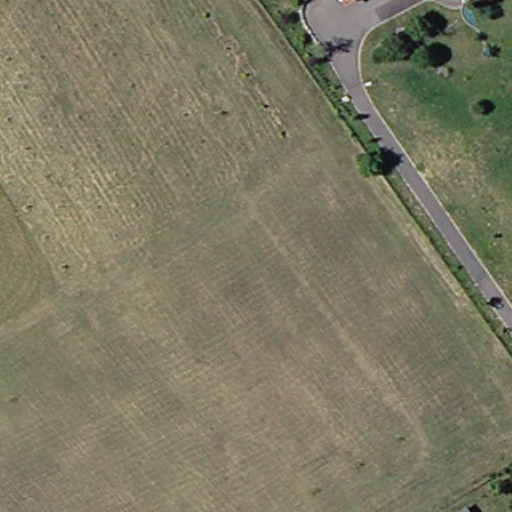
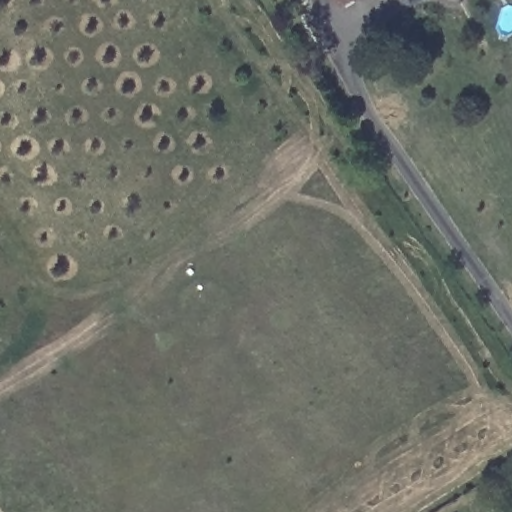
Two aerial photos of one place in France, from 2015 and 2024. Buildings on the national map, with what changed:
unchanged [(340,0),(358,0),(345,9),(340,0)]

